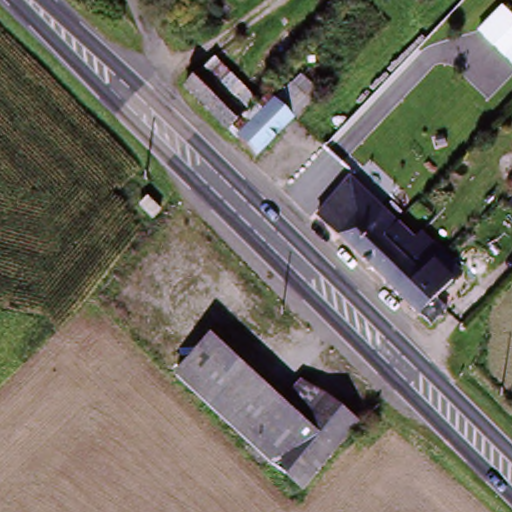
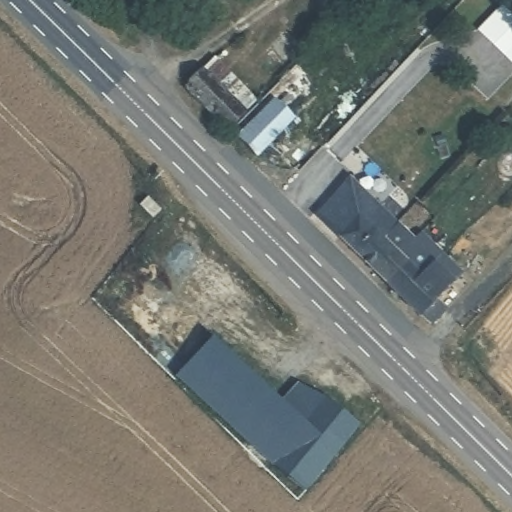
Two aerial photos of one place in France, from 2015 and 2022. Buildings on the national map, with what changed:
unchanged [(270,109),(282,98),(302,76),(322,96),(290,128),(275,143),(268,150),(256,162),(226,132),(187,94),(179,85),(195,67),(205,76),(244,113),(259,97),(270,109)]
unchanged [(381,184),(350,215),(360,226),(340,244),(314,218),(372,160),(385,174),(379,181),(381,184)]
unchanged [(340,244),(360,226),(350,215),(381,184),(383,186),(390,193),(405,178),(422,198),(387,236),(395,243),(406,255),(410,250),(417,244),(422,250),(440,267),(433,274),(402,305),(385,288),(367,271),(340,244)]
unchanged [(447,288),(452,293),(422,323),(402,305),(433,274),(447,288)]
unchanged [(303,488),(172,370),(210,331),(283,397),(304,375),(360,421),(303,488)]

